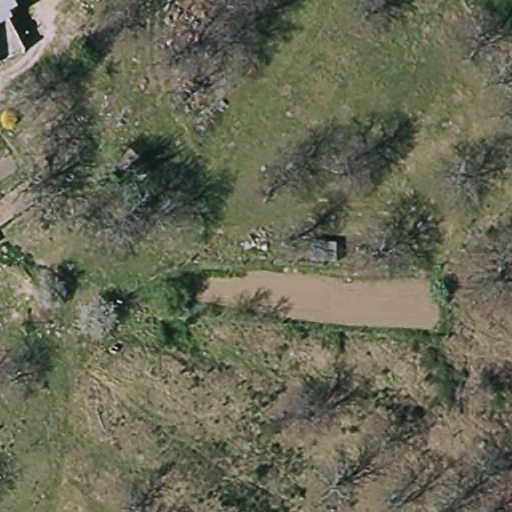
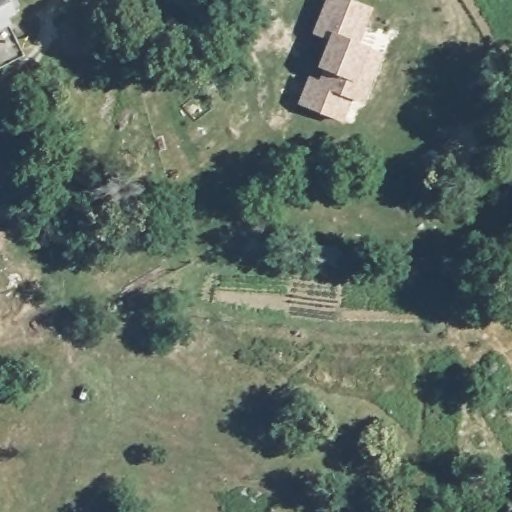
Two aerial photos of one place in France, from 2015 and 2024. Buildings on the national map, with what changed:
unchanged [(16,7),(0,13),(0,0),(23,0),(24,4),(16,7)]
new [(355,0),(375,8),(362,42),(373,47),(387,52),(365,105),(353,100),(345,122),(298,105),(310,76),(320,80),(325,69),(320,67),(330,42),(313,34),(326,0),(355,0)]
unchanged [(0,13),(16,7),(34,52),(0,66),(0,55),(3,54),(0,47),(0,13)]
unchanged [(0,55),(0,47),(3,54),(0,55)]

